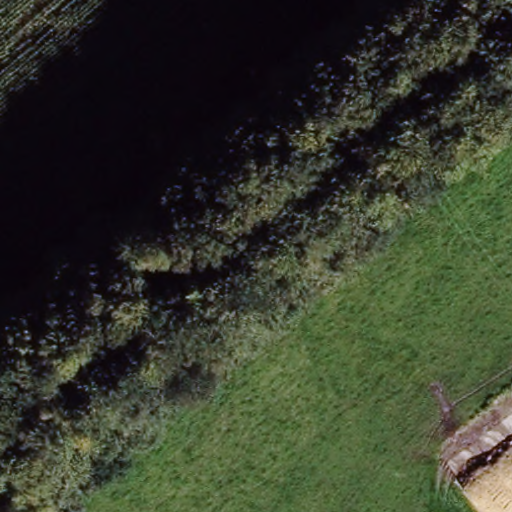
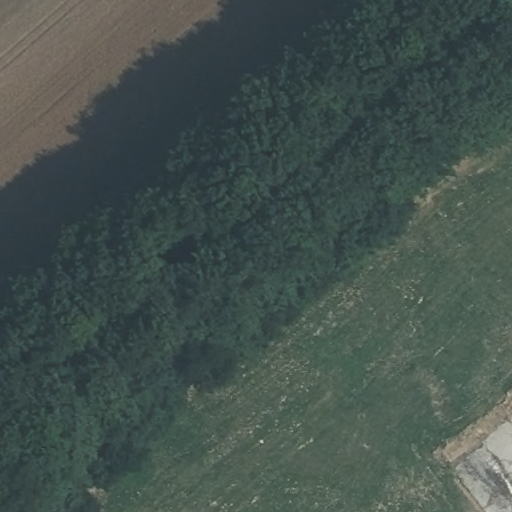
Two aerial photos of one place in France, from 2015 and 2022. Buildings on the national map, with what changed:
[]

